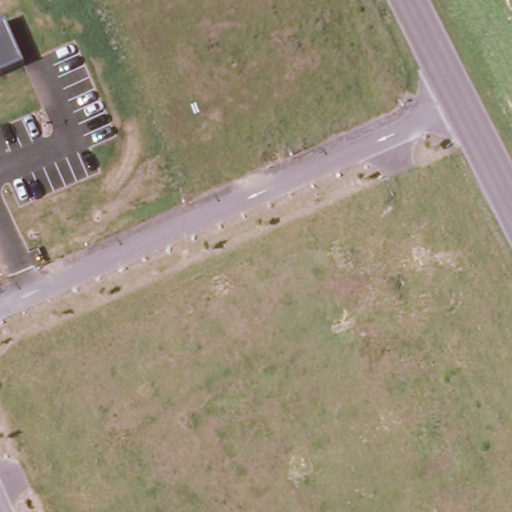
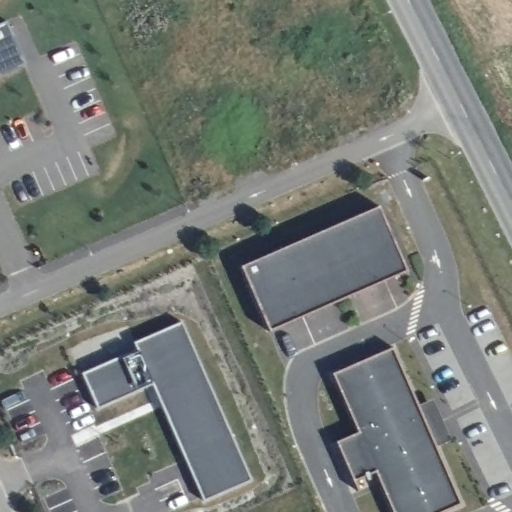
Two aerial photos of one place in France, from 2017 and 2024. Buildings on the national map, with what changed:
unchanged [(7,21),(24,64),(0,75),(0,24),(7,21)]
new [(387,208),(417,273),(278,332),(250,269),(387,208)]
new [(202,501),(152,384),(97,409),(80,373),(137,348),(133,342),(182,321),(250,480),(202,501)]
new [(402,351),(432,421),(441,416),(449,433),(439,436),(468,510),(464,512),(399,512),(383,475),(362,482),(347,445),(367,434),(342,377),(402,351)]

